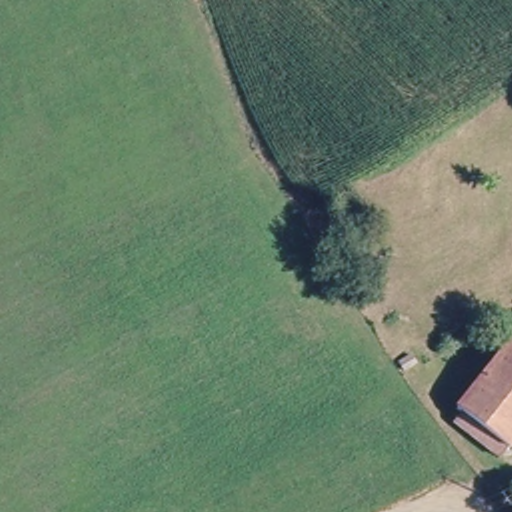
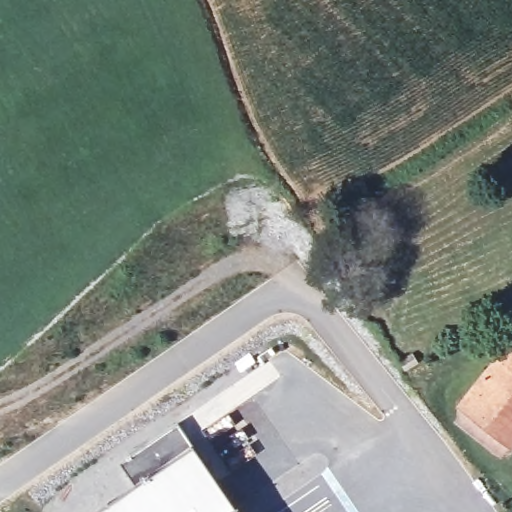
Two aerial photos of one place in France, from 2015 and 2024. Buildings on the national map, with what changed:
unchanged [(512,347),(512,449),(506,457),(456,417),(508,344),(512,347)]
new [(239,512),(99,512),(137,487),(121,463),(177,425),(194,447),(239,512)]

